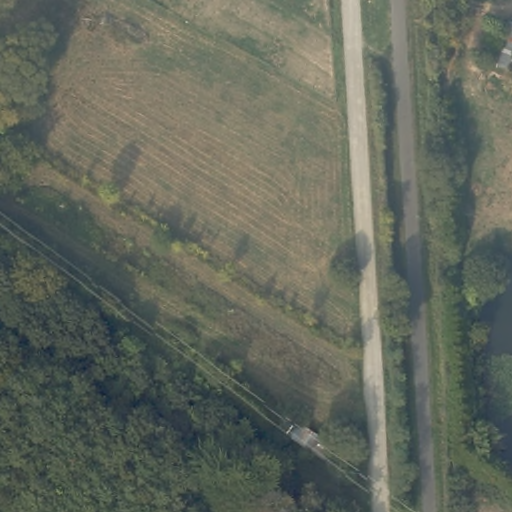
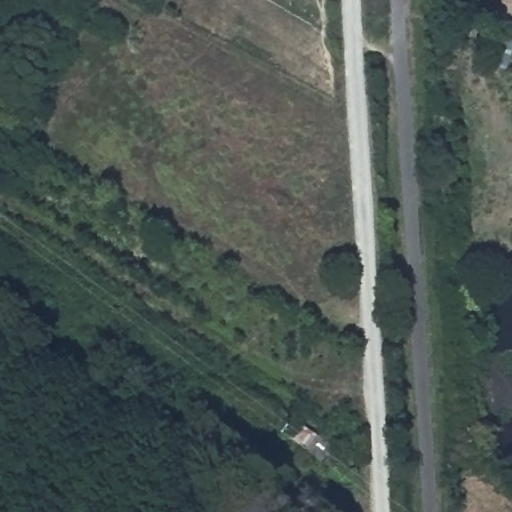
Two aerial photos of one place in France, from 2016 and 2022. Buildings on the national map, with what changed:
unchanged [(508,19),(512,20),(512,69),(496,60),(508,19)]
unchanged [(276,431),(287,412),(346,451),(356,458),(356,485),(347,478),(276,431)]

